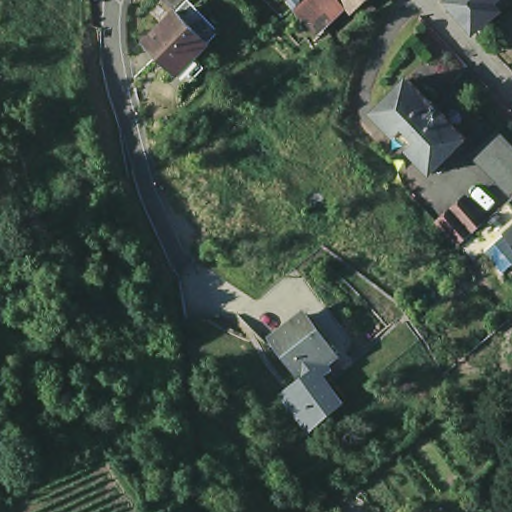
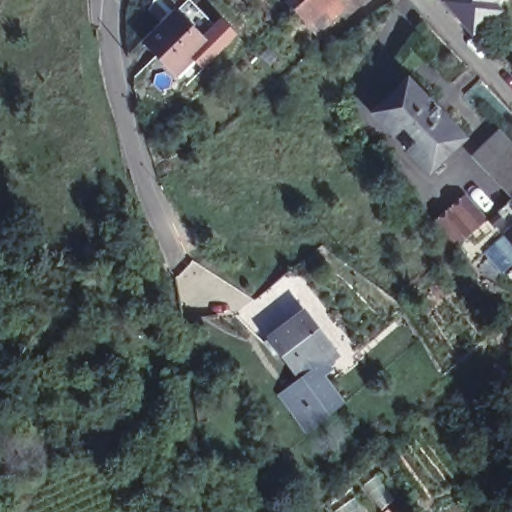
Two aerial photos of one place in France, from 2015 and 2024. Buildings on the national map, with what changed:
unchanged [(155,17),(165,5),(160,0),(192,0),(176,15),(165,27),(155,17)]
unchanged [(317,39),(305,25),(293,10),(304,0),(332,0),(314,17),(325,31),(317,39)]
unchanged [(357,10),(345,0),(368,0),(357,10)]
unchanged [(448,3),(452,0),(458,0),(460,2),(462,0),(490,0),(497,7),(504,16),(477,36),(452,8),(448,3)]
unchanged [(497,7),(490,0),(505,0),(497,7)]
unchanged [(182,16),(213,48),(180,80),(149,47),(182,16)]
unchanged [(430,174),(407,150),(416,141),(405,129),(395,138),(372,115),(410,80),(430,101),(431,100),(447,117),(446,118),(467,140),(430,174)]
unchanged [(512,187),(507,191),(470,152),(494,128),(512,148),(512,187)]
unchanged [(432,218),(460,193),(481,216),(479,218),(477,219),(474,222),(460,234),(452,241),(432,218)]
unchanged [(512,221),(502,230),(467,259),(452,241),(460,234),(474,222),(477,219),(479,218),(481,216),(504,197),(512,208),(512,221)]
unchanged [(512,221),(512,242),(502,230),(512,221)]
unchanged [(289,352),(282,357),(268,339),(305,312),(331,345),(337,341),(344,349),(318,369),(308,376),(289,352)]
unchanged [(296,385),(308,376),(318,369),(321,373),(324,371),(347,400),(322,420),(296,385)]

